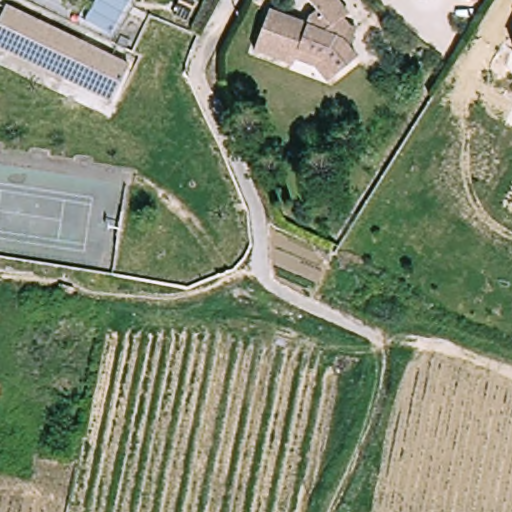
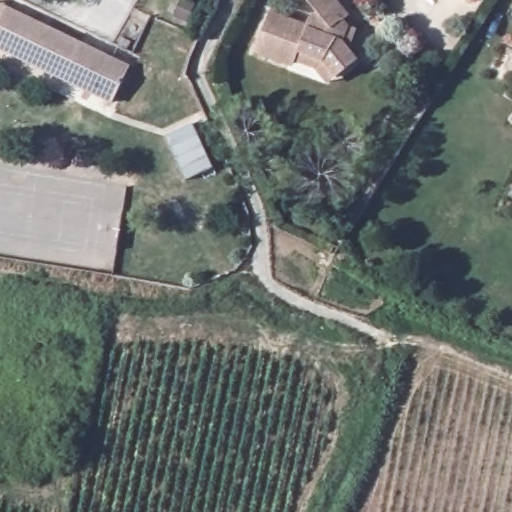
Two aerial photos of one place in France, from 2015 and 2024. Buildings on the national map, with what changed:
unchanged [(112,39),(85,24),(97,0),(133,0),(112,39)]
unchanged [(359,51),(364,57),(341,76),(330,67),(323,58),(307,54),(300,68),(258,51),(275,14),(310,27),(312,21),(320,14),(311,0),(338,0),(353,17),(351,24),(356,29),(366,33),(359,51)]
unchanged [(114,95),(92,88),(79,84),(70,81),(0,39),(17,10),(86,48),(93,52),(118,66),(130,71),(124,78),(114,95)]
new [(213,167),(186,180),(166,136),(193,124),(213,167)]

